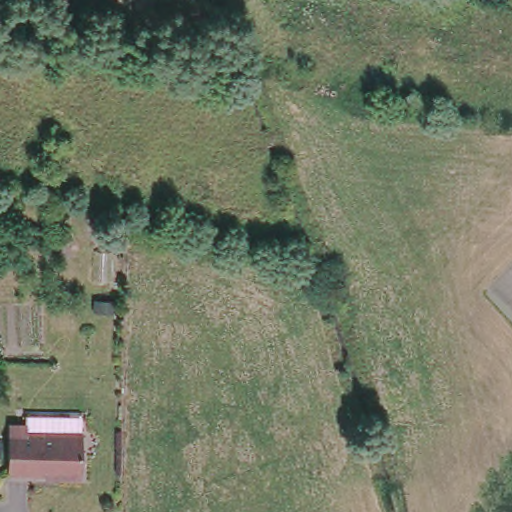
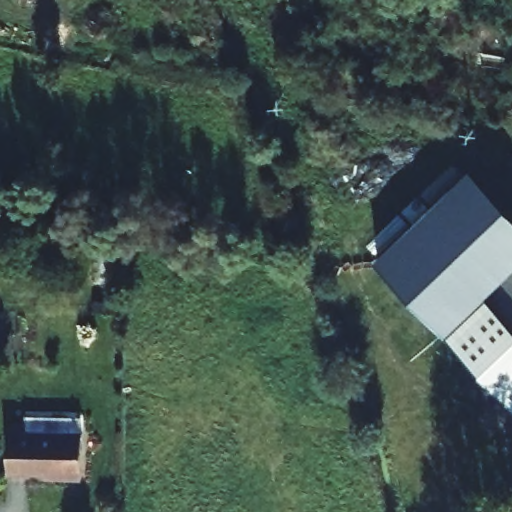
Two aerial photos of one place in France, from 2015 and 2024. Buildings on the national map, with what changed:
new [(377,256),(472,165),(512,208),(512,275),(494,293),(512,313),(512,400),(377,256)]
unchanged [(494,293),(512,275),(512,313),(494,293)]
unchanged [(81,479),(57,478),(57,473),(7,473),(7,426),(25,426),(25,417),(81,417),(81,433),(81,479)]

